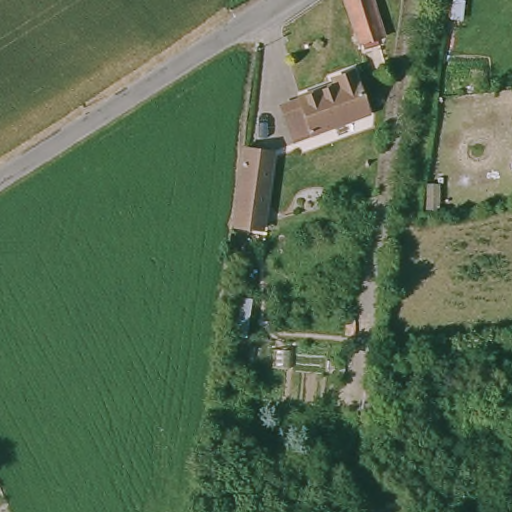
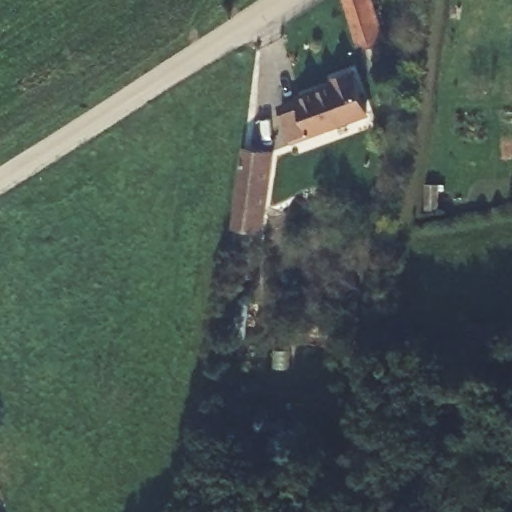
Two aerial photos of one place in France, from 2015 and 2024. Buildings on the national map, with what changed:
unchanged [(371,0),(386,43),(362,52),(347,4),(355,0),(371,0)]
unchanged [(367,110),(295,140),(280,104),(300,96),(299,94),(331,81),(329,76),(350,67),(367,110)]
unchanged [(244,151),(274,155),(264,220),(262,233),(234,228),(235,224),(244,151)]

